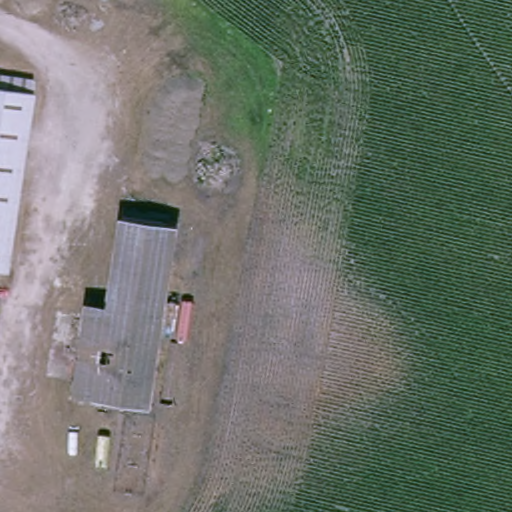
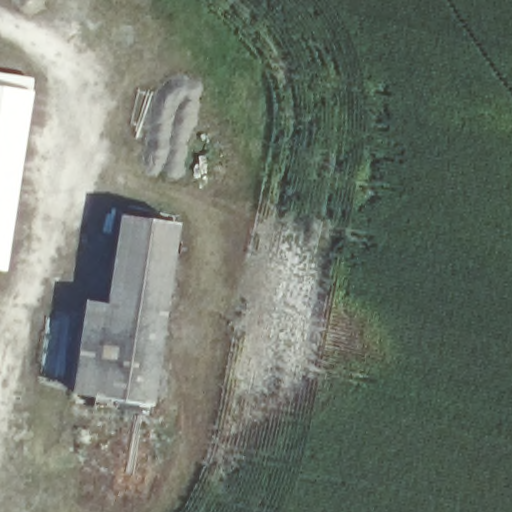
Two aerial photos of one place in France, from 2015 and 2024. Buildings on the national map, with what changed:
unchanged [(9,278),(0,277),(0,90),(35,95),(9,278)]
unchanged [(113,313),(122,225),(178,233),(168,321),(113,313)]
unchanged [(101,408),(113,313),(168,321),(153,415),(101,408)]

